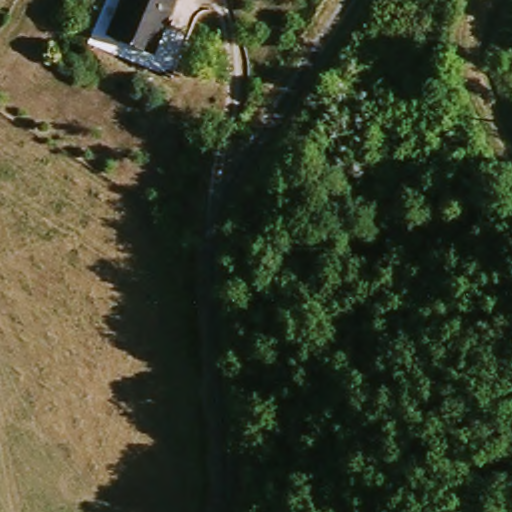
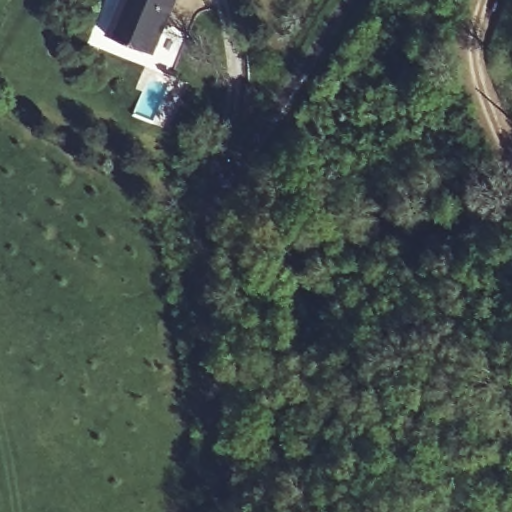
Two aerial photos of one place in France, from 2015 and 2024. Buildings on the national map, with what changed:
unchanged [(158,50),(146,55),(111,37),(130,0),(184,0),(158,50)]

